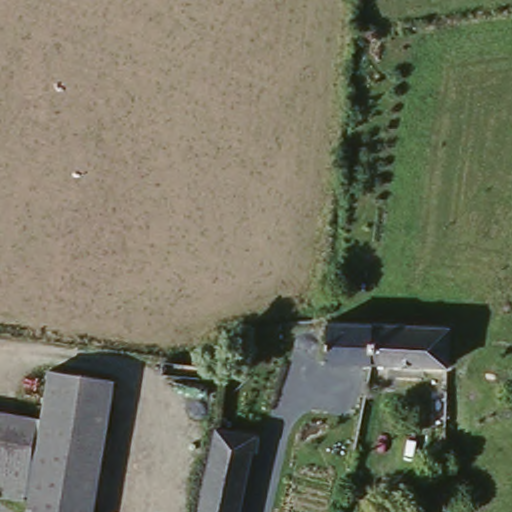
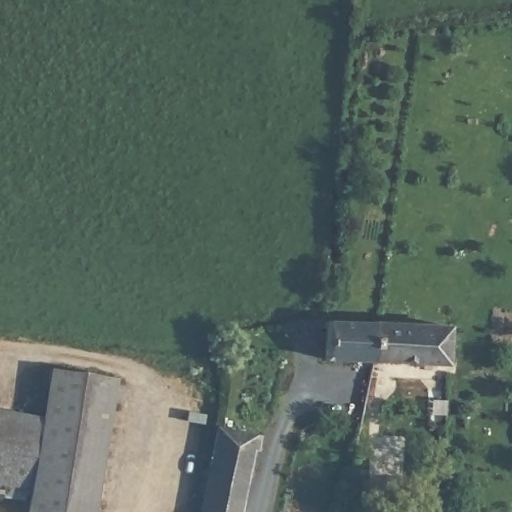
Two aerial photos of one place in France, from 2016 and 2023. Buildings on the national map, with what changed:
unchanged [(359,326),(442,323),(443,362),(360,366),(359,326)]
unchanged [(359,326),(360,366),(324,368),(322,327),(359,326)]
unchanged [(47,419),(56,368),(117,380),(87,512),(25,512),(30,488),(24,488),(42,418),(47,419)]
unchanged [(20,498),(1,495),(5,481),(0,481),(0,411),(42,418),(24,488),(20,498)]
unchanged [(257,449),(241,512),(194,512),(213,440),(257,449)]

